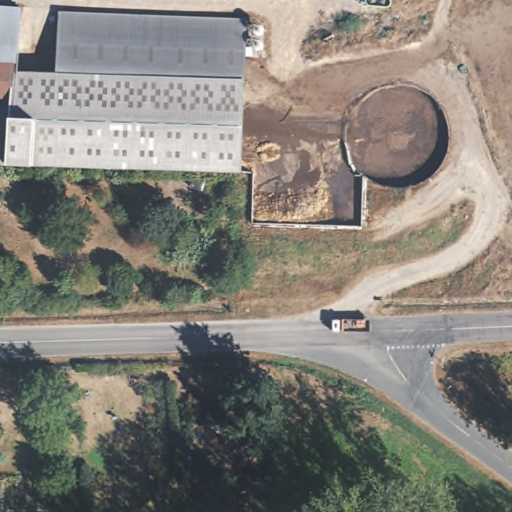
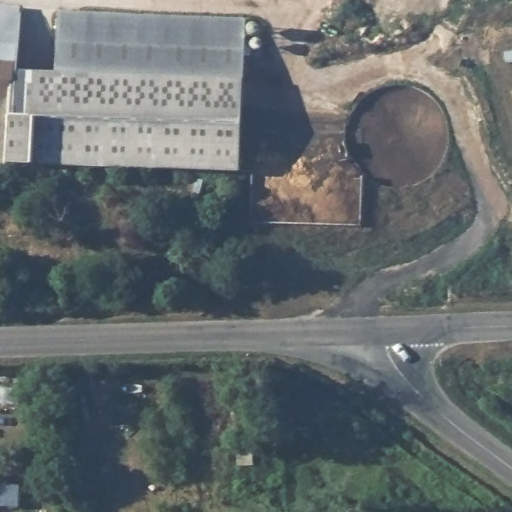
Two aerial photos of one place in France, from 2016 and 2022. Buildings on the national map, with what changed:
unchanged [(18,12),(11,79),(52,81),(57,18),(57,15),(122,20),(232,28),(232,41),(232,165),(51,168),(0,166),(0,9),(18,12)]

